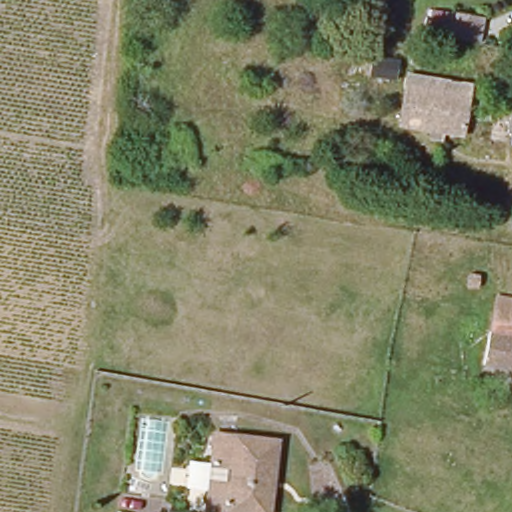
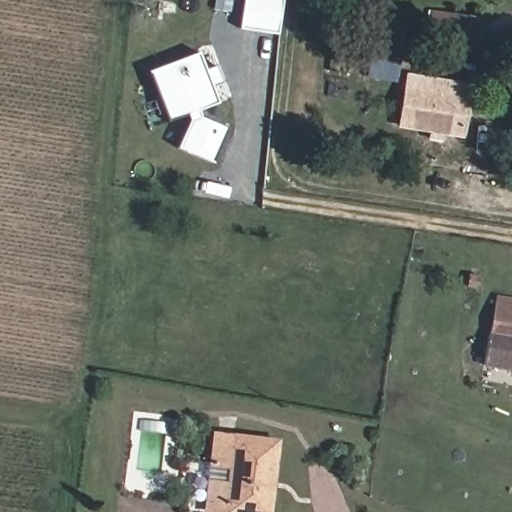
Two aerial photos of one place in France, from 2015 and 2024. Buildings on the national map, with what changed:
new [(231,12),(221,11),(222,0),(232,0),(231,12)]
new [(277,32),(242,29),(244,0),(280,0),(277,32)]
unchanged [(441,11),(476,16),(472,42),(436,37),(441,11)]
new [(213,162),(178,146),(189,121),(187,115),(167,121),(148,71),(198,52),(218,103),(198,110),(201,117),(228,127),(213,162)]
unchanged [(403,64),(402,83),(377,81),(380,63),(403,64)]
unchanged [(398,134),(404,84),(467,92),(461,142),(398,134)]
unchanged [(492,142),(498,96),(510,99),(502,146),(492,142)]
unchanged [(465,267),(482,271),(480,285),(463,282),(465,267)]
unchanged [(495,317),(499,297),(512,300),(512,372),(488,369),(495,317)]
unchanged [(203,498),(213,435),(281,443),(272,510),(272,512),(204,512),(201,512),(203,498)]

